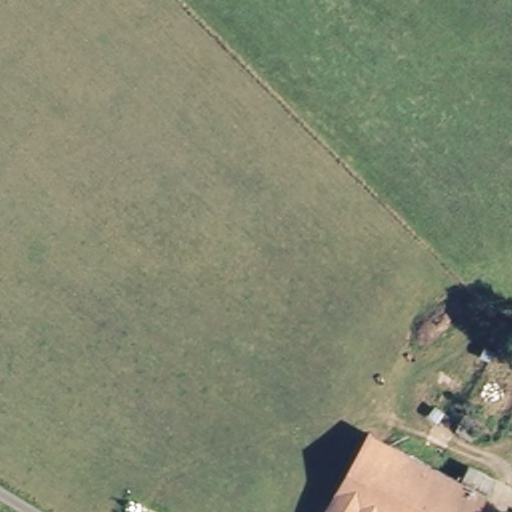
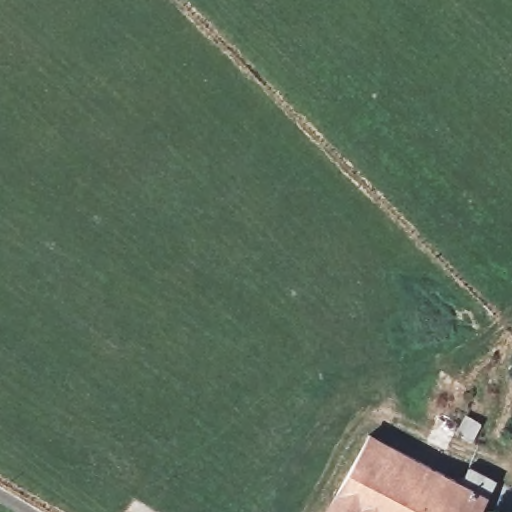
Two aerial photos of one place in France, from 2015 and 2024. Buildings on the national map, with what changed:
unchanged [(475,467),(499,482),(490,498),(484,495),(474,512),(323,512),(375,429),(465,484),(475,467)]

